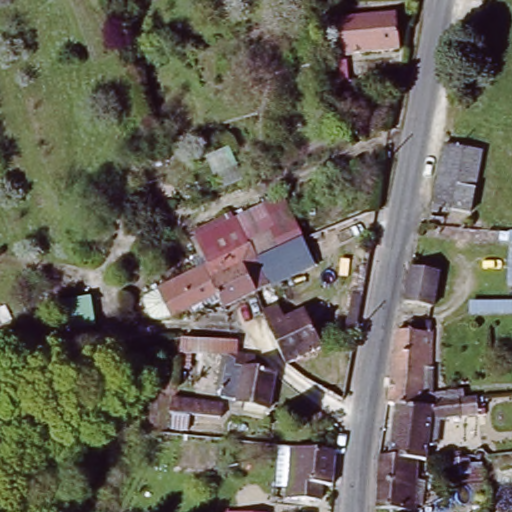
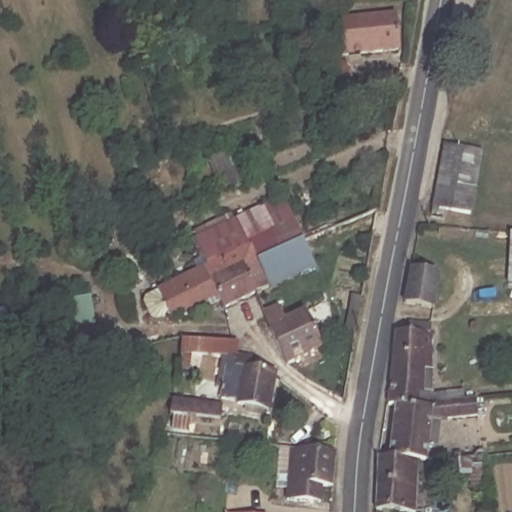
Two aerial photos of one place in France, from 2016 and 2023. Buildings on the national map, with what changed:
unchanged [(339,57),(336,21),(397,17),(400,51),(339,57)]
unchanged [(342,102),(340,65),(348,64),(352,100),(342,102)]
unchanged [(443,206),(442,212),(435,211),(447,144),(466,147),(484,151),(478,187),(474,211),(443,206)]
unchanged [(284,195),(304,240),(262,261),(258,256),(282,241),(270,222),(247,235),(246,234),(237,218),(284,195)]
unchanged [(144,300),(161,290),(175,282),(209,262),(194,236),(234,214),(247,235),(270,222),(282,241),(258,256),(271,277),(259,286),(229,303),(225,297),(212,304),(209,298),(182,313),(177,316),(159,326),(144,300)]
unchanged [(507,282),(509,233),(512,233),(512,283),(507,282)]
unchanged [(408,301),(415,267),(445,272),(438,306),(408,301)]
unchanged [(470,314),(470,301),(512,302),(512,315),(470,314)]
unchanged [(265,317),(280,309),(287,323),(307,313),(315,331),(322,327),(325,327),(328,328),(330,331),(332,333),(332,336),(331,339),(330,342),(327,343),(322,346),(325,350),(290,367),(288,365),(265,317)]
unchanged [(432,331),(428,367),(422,367),(420,391),(437,393),(436,400),(434,404),(395,400),(387,400),(397,327),(432,331)]
unchanged [(232,350),(230,361),(228,360),(182,354),(182,340),(240,342),(240,352),(232,350)]
unchanged [(238,401),(238,397),(222,395),(228,360),(230,361),(232,350),(257,355),(257,366),(277,370),(270,404),(238,401)]
unchanged [(172,411),(174,394),(224,402),(221,417),(172,411)]
unchanged [(475,395),(478,415),(437,419),(436,417),(430,417),(425,457),(425,458),(389,453),(395,400),(434,404),(436,400),(475,395)]
unchanged [(287,500),(289,483),(277,482),(280,450),(334,453),(337,454),(334,488),(322,487),(322,502),(287,500)]
unchanged [(389,453),(425,458),(425,457),(440,456),(440,463),(419,463),(415,506),(375,503),(378,452),(389,453)]
unchanged [(450,471),(447,455),(469,452),(470,468),(450,471)]

